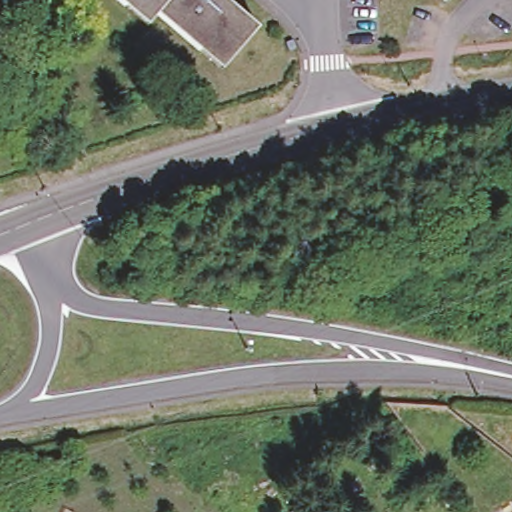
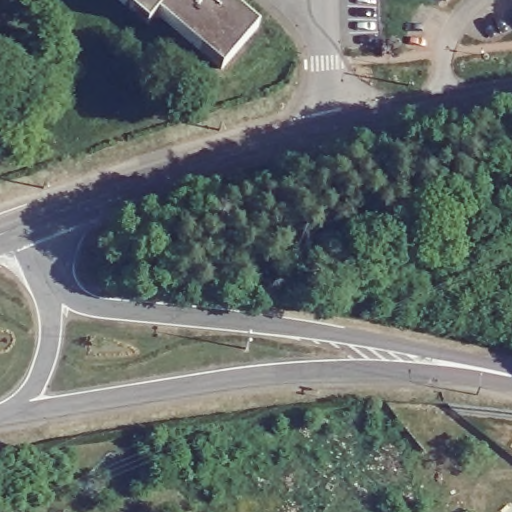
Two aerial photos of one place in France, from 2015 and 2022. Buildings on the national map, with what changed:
unchanged [(220,65),(155,10),(145,22),(119,0),(229,0),(256,24),(220,65)]

